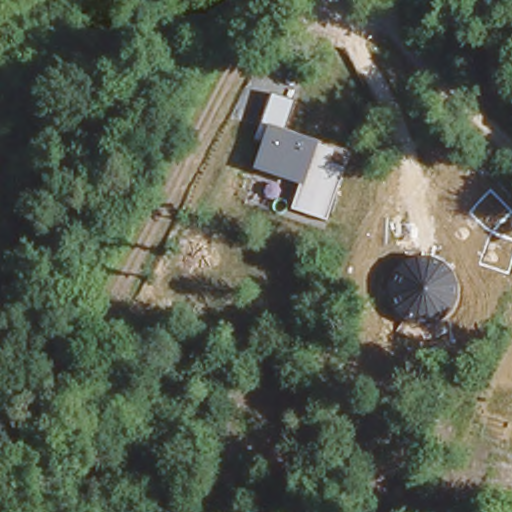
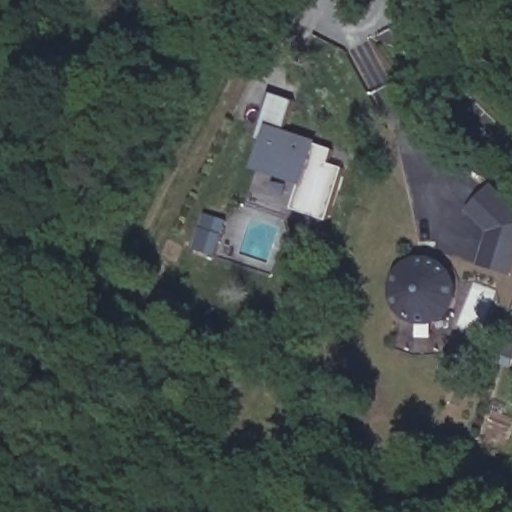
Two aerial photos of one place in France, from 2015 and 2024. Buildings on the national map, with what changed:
unchanged [(330,165),(343,169),(327,221),(292,209),(300,186),(254,170),(262,142),(255,140),(272,94),(293,102),(284,131),(318,142),(317,146),(334,151),(330,165)]
new [(511,277),(477,265),(487,233),(465,212),(492,185),(512,205),(512,272),(511,277)]
unchanged [(457,297),(452,312),(442,321),(428,325),(415,325),(402,320),(392,310),(387,298),(388,284),(395,273),(405,262),(417,257),(431,257),(443,263),(452,273),(457,285),(457,297)]

